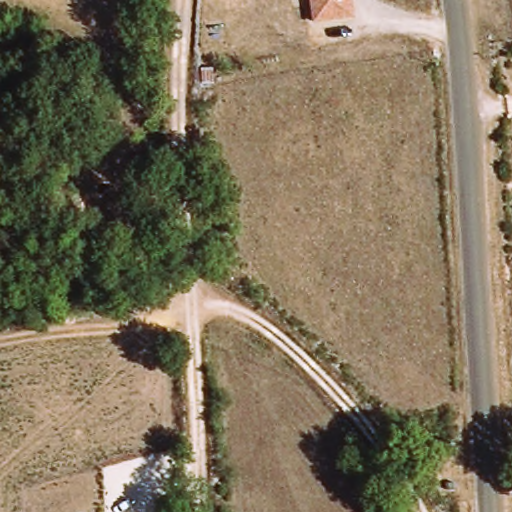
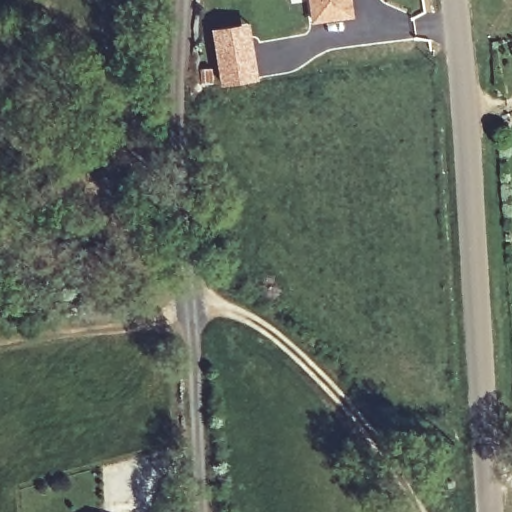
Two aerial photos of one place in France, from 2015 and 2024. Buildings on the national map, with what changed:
unchanged [(351,0),(353,14),(314,20),(311,0),(351,0)]
new [(217,67),(211,26),(250,21),(259,78),(200,85),(199,68),(217,67)]
unchanged [(452,481),(458,480),(459,488),(452,488),(452,481)]

